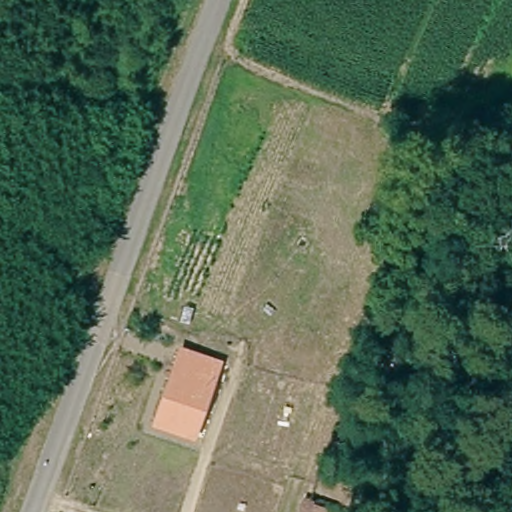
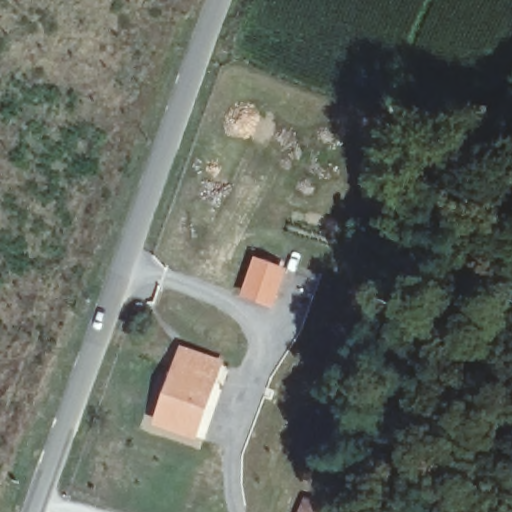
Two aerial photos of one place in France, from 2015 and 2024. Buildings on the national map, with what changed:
new [(273,307),(240,296),(254,256),(287,267),(273,307)]
unchanged [(212,364),(187,433),(146,419),(173,349),(212,364)]
new [(302,502),(328,512),(298,512),(302,502)]

